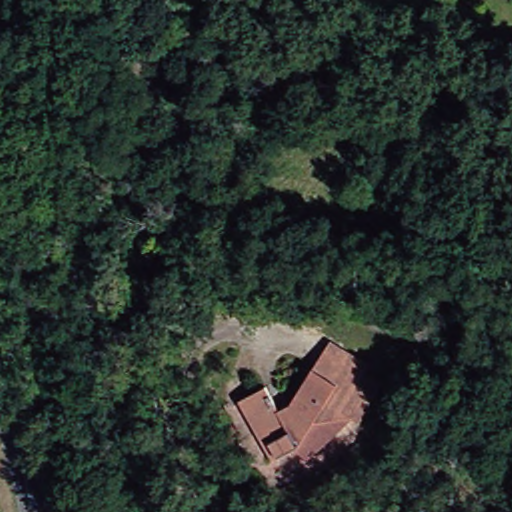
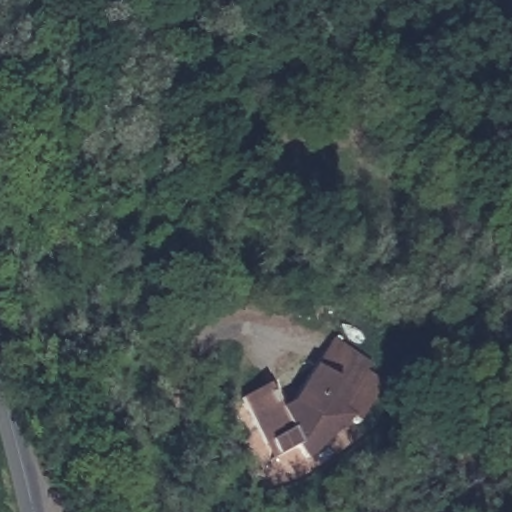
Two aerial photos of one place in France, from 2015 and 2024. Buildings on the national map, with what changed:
unchanged [(317,370),(335,341),(386,381),(358,421),(355,416),(312,461),(300,449),(292,450),(281,457),(271,438),(265,441),(243,401),(267,387),(281,411),(292,405),(317,370)]

